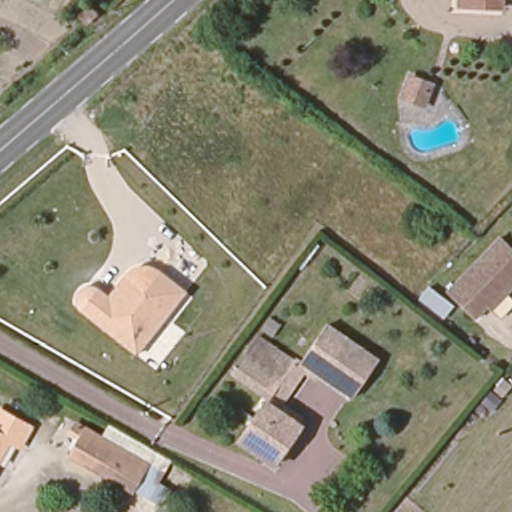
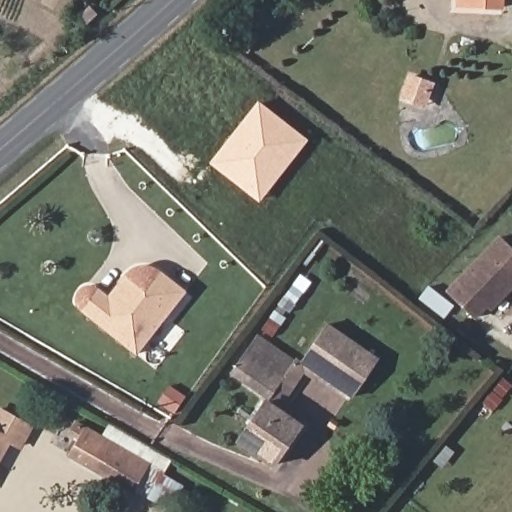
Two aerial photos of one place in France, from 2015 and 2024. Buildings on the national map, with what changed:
unchanged [(460,0),(503,0),(503,4),(484,3),(471,3),(459,3),(460,0)]
unchanged [(84,20),(74,14),(80,6),(88,10),(84,20)]
new [(410,76),(433,84),(425,106),(402,98),(410,76)]
new [(259,203),(209,164),(258,101),(308,140),(259,203)]
unchanged [(491,309),(478,322),(453,298),(505,243),(512,249),(512,297),(511,298),(496,315),(491,309)]
unchanged [(82,313),(77,306),(76,299),(79,293),(85,287),(92,287),(99,289),(107,295),(126,274),(135,267),(142,266),(150,267),(160,272),(186,293),(138,355),(82,313)]
unchanged [(376,362),(352,397),(301,360),(326,325),(376,362)]
unchanged [(229,369),(251,336),(292,363),(268,398),(229,369)]
unchanged [(301,422),(273,464),(238,441),(268,398),(301,422)]
unchanged [(19,448),(10,442),(0,462),(0,410),(32,427),(19,448)]
unchanged [(89,430),(153,468),(138,492),(74,455),(89,430)]

